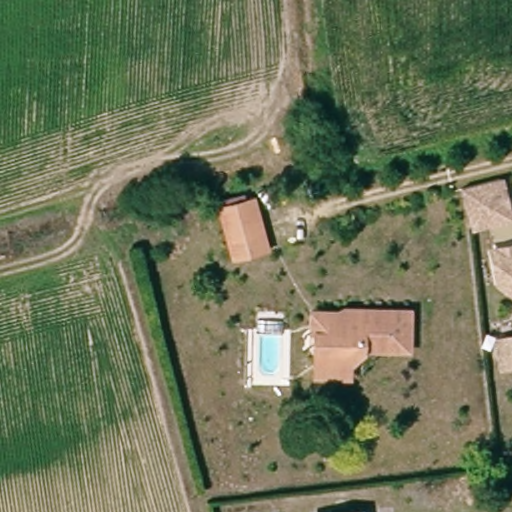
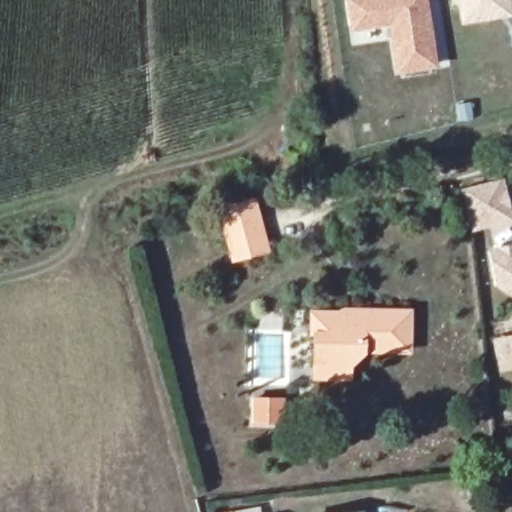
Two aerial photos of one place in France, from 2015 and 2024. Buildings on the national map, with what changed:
new [(399,71),(394,39),(355,44),(349,0),(424,0),(434,64),(399,71)]
new [(512,16),(460,24),(457,0),(511,0),(512,7),(512,16)]
unchanged [(512,218),(478,226),(470,189),(471,189),(471,188),(471,187),(508,178),(512,195),(512,218)]
unchanged [(271,248),(264,250),(239,258),(234,241),(224,208),(256,199),(271,248)]
unchanged [(499,249),(512,247),(512,286),(505,282),(499,249)]
unchanged [(311,374),(311,348),(311,330),(311,310),(318,310),(353,310),(353,307),(405,306),(405,345),(360,346),(360,347),(346,361),(346,374),(311,374)]
unchanged [(501,339),(507,339),(512,338),(512,366),(507,367),(501,339)]
unchanged [(366,509),(367,512),(328,512),(366,509)]

